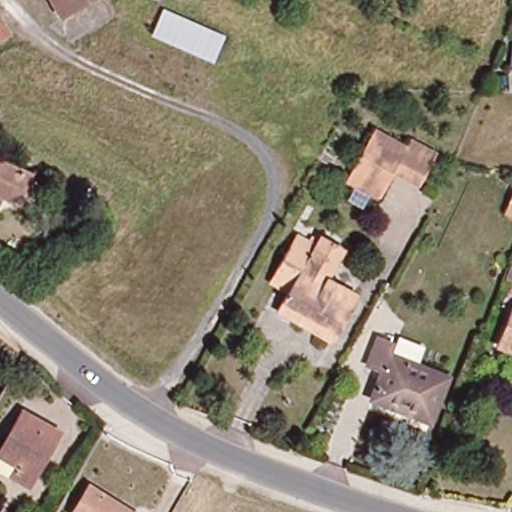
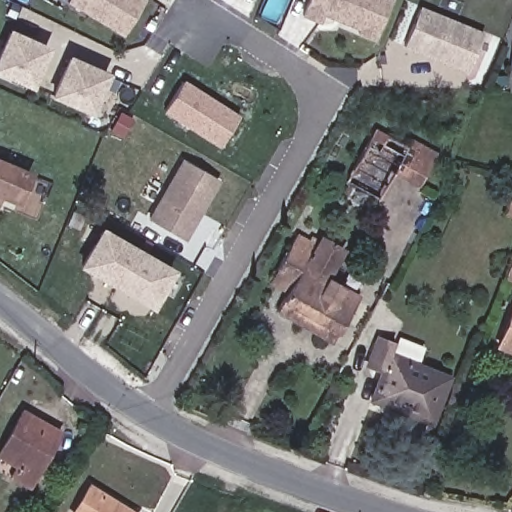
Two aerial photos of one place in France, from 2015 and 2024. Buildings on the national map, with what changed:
demolished [(59,0),(92,0),(68,15),(59,0)]
new [(69,0),(145,0),(124,34),(69,0)]
new [(359,33),(360,29),(323,14),(319,23),(303,16),(310,0),(390,0),(375,40),(359,33)]
new [(467,73),(405,46),(420,8),(484,34),(467,73)]
new [(37,84),(0,68),(16,31),(53,47),(37,84)]
new [(78,56),(115,74),(98,111),(62,94),(78,56)]
new [(185,80),(241,116),(219,148),(164,112),(185,80)]
unchanged [(413,182),(389,167),(371,197),(342,179),(372,128),(402,144),(407,134),(432,149),(413,182)]
unchanged [(29,172),(17,198),(2,193),(0,196),(0,159),(29,172)]
new [(186,241),(147,218),(183,159),(221,180),(186,241)]
unchanged [(512,184),(512,221),(501,217),(512,184)]
new [(108,231),(177,270),(158,305),(88,266),(108,231)]
unchanged [(306,240),(308,236),(317,241),(319,238),(341,249),(326,278),(357,294),(331,343),(277,312),(285,295),(266,285),(275,269),(294,234),(306,240)]
unchanged [(512,282),(502,279),(512,254),(512,282)]
unchanged [(512,302),(512,352),(496,347),(512,302)]
unchanged [(430,425),(372,399),(383,372),(371,367),(382,340),(395,345),(390,359),(447,384),(430,425)]
unchanged [(34,481),(12,469),(18,456),(3,447),(23,409),(63,429),(34,481)]
unchanged [(87,489),(123,512),(74,512),(87,489)]

